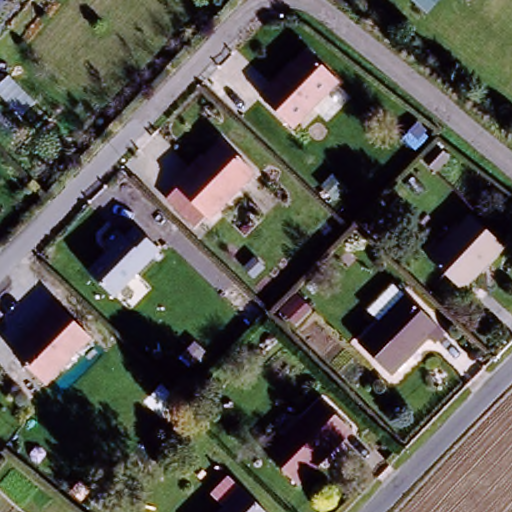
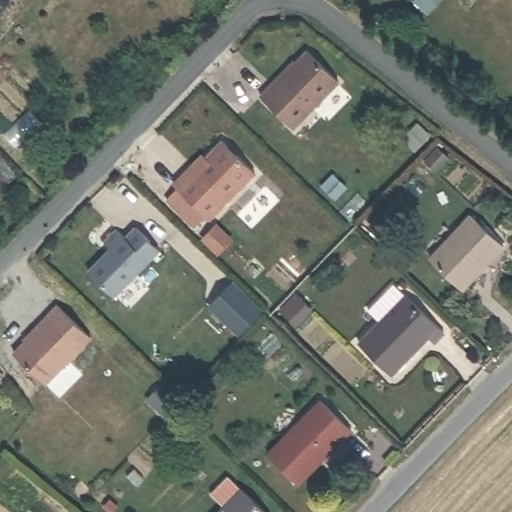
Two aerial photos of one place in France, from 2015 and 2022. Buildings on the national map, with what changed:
unchanged [(0,0),(8,0),(0,10),(0,0)]
unchanged [(290,135),(257,102),(305,55),(337,87),(290,135)]
unchanged [(407,117),(422,127),(411,142),(397,132),(407,117)]
unchanged [(418,152),(432,139),(446,152),(432,167),(418,152)]
unchanged [(174,187),(185,176),(187,179),(222,143),(256,176),(211,223),(174,187)]
unchanged [(460,287),(426,254),(470,210),(503,243),(460,287)]
unchanged [(120,234),(126,240),(136,230),(161,254),(116,300),(91,275),(114,252),(107,246),(120,234)]
unchanged [(430,343),(424,337),(385,375),(354,342),(374,322),(362,310),(378,293),(392,281),(403,292),(442,331),(430,343)]
new [(231,285),(261,312),(240,332),(211,305),(231,285)]
unchanged [(44,318),(55,308),(89,338),(45,387),(11,357),(45,322),(44,318)]
unchanged [(263,452),(315,397),(345,426),(293,480),(263,452)]
unchanged [(266,512),(211,512),(239,484),(266,512)]

